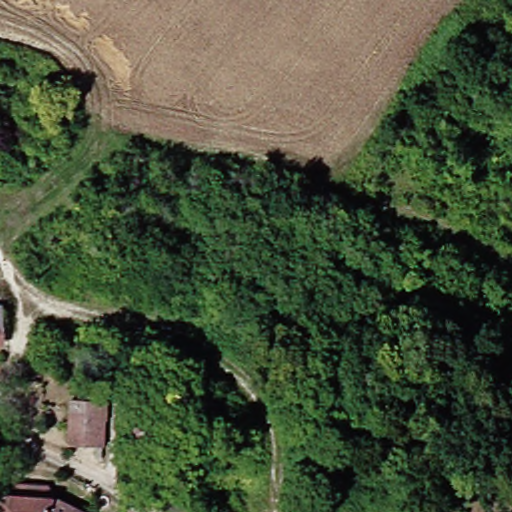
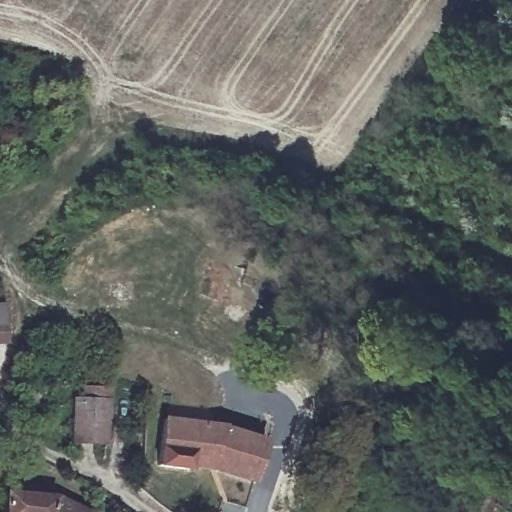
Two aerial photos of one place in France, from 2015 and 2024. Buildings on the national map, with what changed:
unchanged [(21,320),(7,328),(0,329),(0,292),(16,291),(21,320)]
unchanged [(21,320),(12,345),(0,346),(0,329),(7,328),(21,320)]
unchanged [(118,408),(112,414),(112,435),(77,432),(85,390),(118,393),(118,408)]
demolished [(147,406),(181,408),(180,425),(147,422),(147,406)]
new [(163,421),(221,427),(266,443),(255,481),(215,468),(218,459),(211,455),(189,453),(189,471),(155,467),(157,448),(163,421)]
unchanged [(58,484),(62,497),(94,512),(9,512),(14,477),(58,484)]

